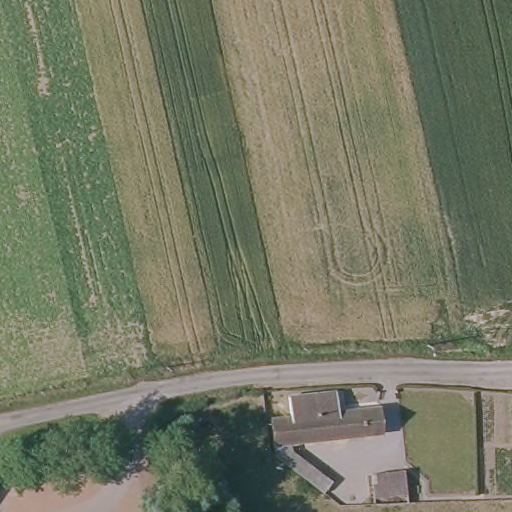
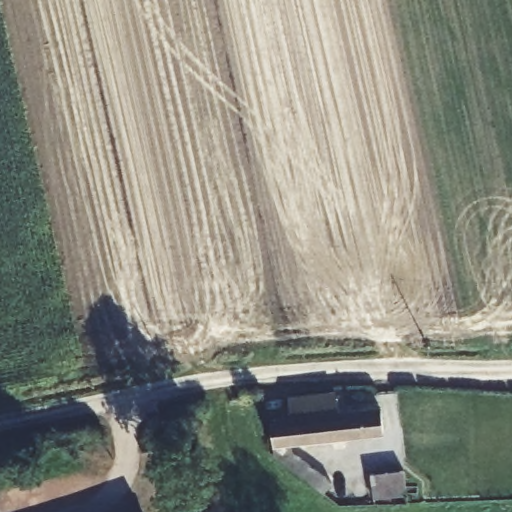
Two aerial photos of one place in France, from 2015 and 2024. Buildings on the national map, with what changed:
unchanged [(336,397),(339,418),(380,415),(383,441),(271,451),(268,426),(290,423),(288,403),(336,397)]
unchanged [(293,467),(331,487),(327,496),(289,476),(293,467)]
unchanged [(354,500),(353,475),(389,473),(389,500),(354,500)]

